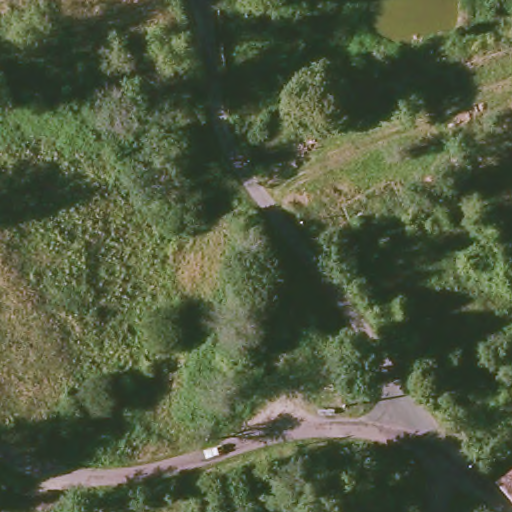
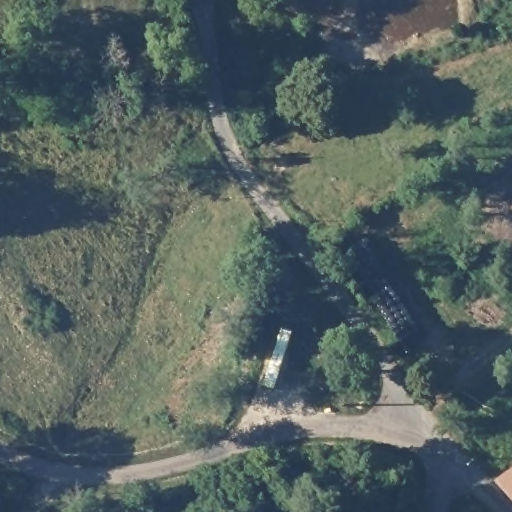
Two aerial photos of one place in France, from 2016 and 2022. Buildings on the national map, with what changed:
unchanged [(512,512),(507,512),(488,492),(512,474),(512,512)]

